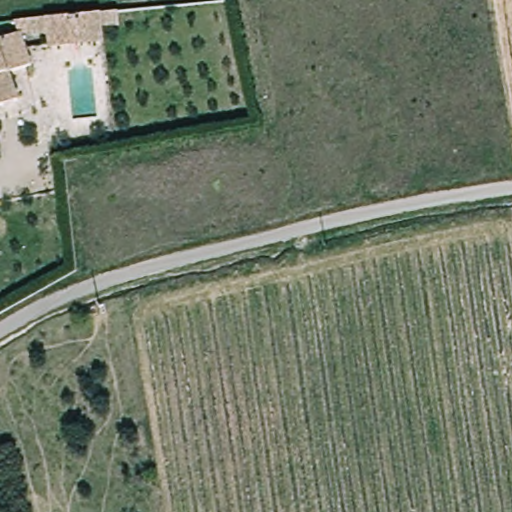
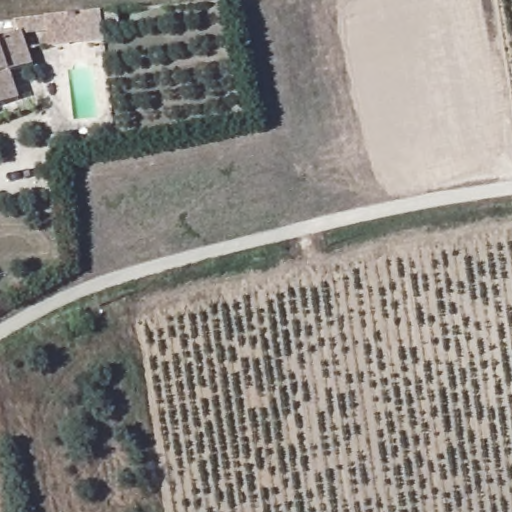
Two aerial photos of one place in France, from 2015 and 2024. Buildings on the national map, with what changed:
unchanged [(99,15),(102,40),(47,45),(44,20),(99,15)]
unchanged [(33,66),(12,74),(21,98),(0,106),(0,43),(21,35),(33,66)]

